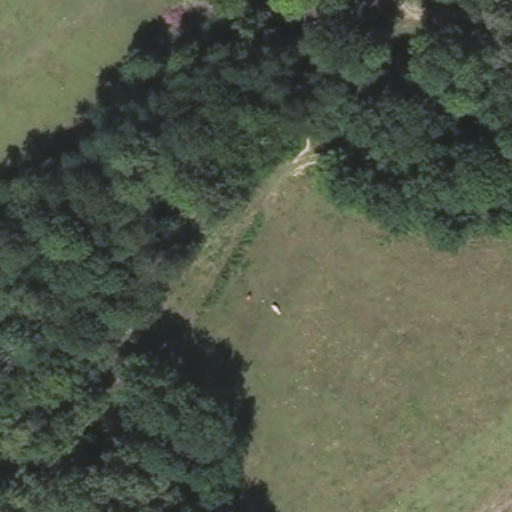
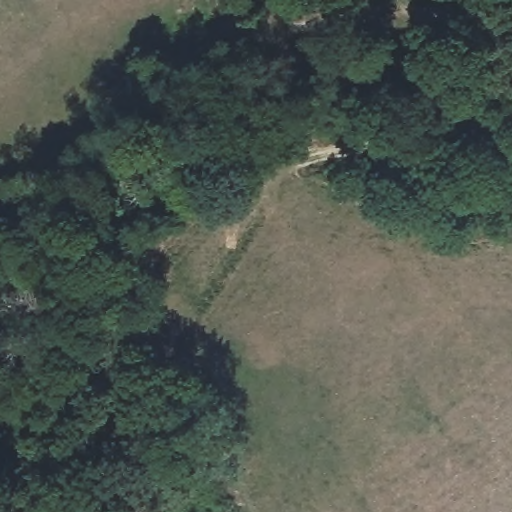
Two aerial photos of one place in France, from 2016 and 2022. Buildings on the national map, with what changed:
unchanged [(290,25),(291,0),(310,0),(308,26),(290,25)]

